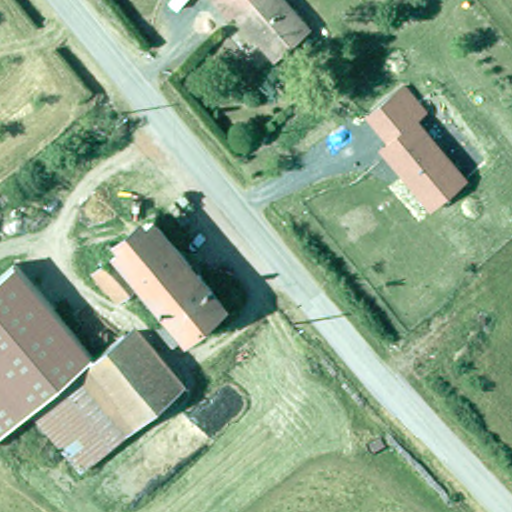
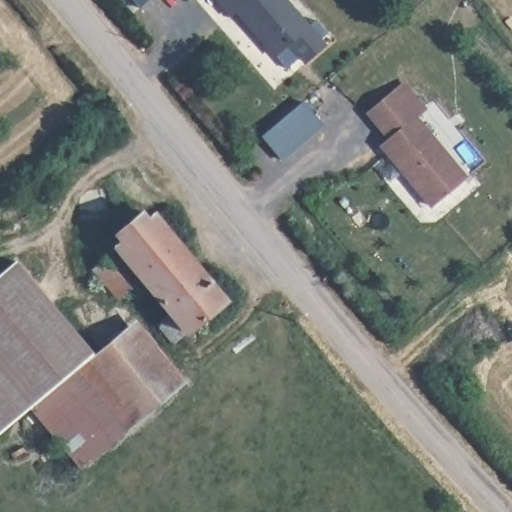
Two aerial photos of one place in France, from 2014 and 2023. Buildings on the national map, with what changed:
new [(132,0),(146,0),(138,6),(132,0)]
unchanged [(214,0),(281,0),(307,30),(275,59),(238,14),(231,20),(214,0)]
unchanged [(388,139),(366,112),(406,80),(431,111),(421,120),(470,178),(432,210),(380,146),(388,139)]
new [(263,136),(305,101),(325,125),(283,160),(263,136)]
unchanged [(170,312),(141,276),(117,296),(95,269),(108,256),(100,249),(110,241),(117,247),(155,215),(226,300),(187,333),(174,344),(157,323),(170,312)]
unchanged [(94,354),(76,370),(32,407),(0,433),(0,272),(16,258),(94,354)]
unchanged [(137,320),(187,381),(175,389),(125,328),(137,320)]
unchanged [(175,389),(126,431),(76,370),(125,328),(175,389)]
unchanged [(126,431),(82,467),(32,407),(76,370),(126,431)]

